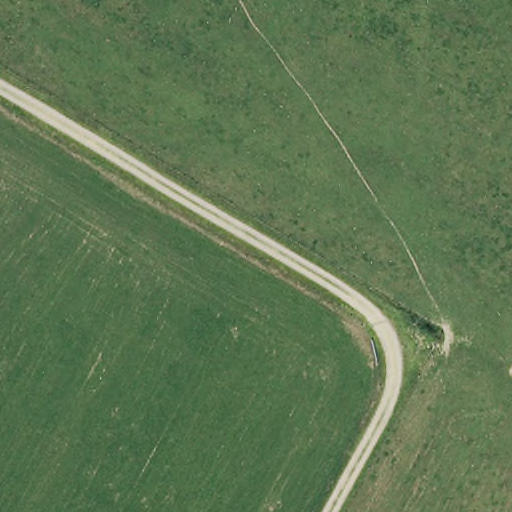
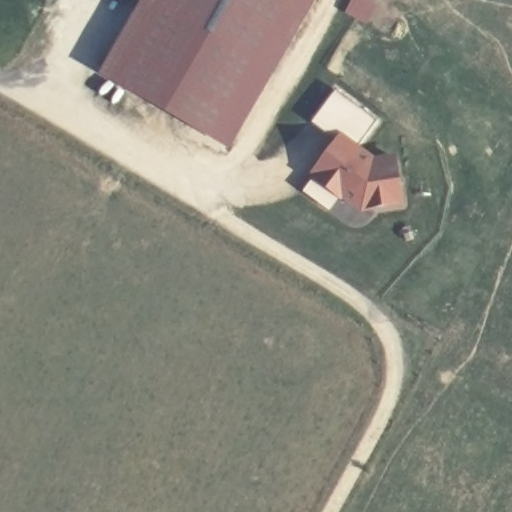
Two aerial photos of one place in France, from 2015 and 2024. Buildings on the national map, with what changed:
new [(142,0),(317,0),(230,149),(100,73),(142,0)]
new [(377,120),(357,150),(372,161),(394,160),(400,208),(359,213),(307,176),(336,139),(312,124),(334,89),(377,120)]

